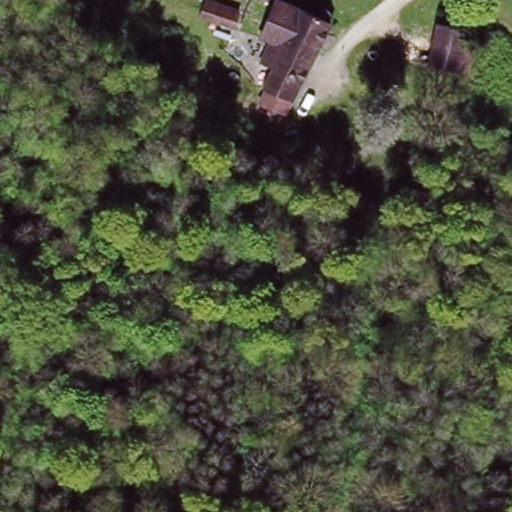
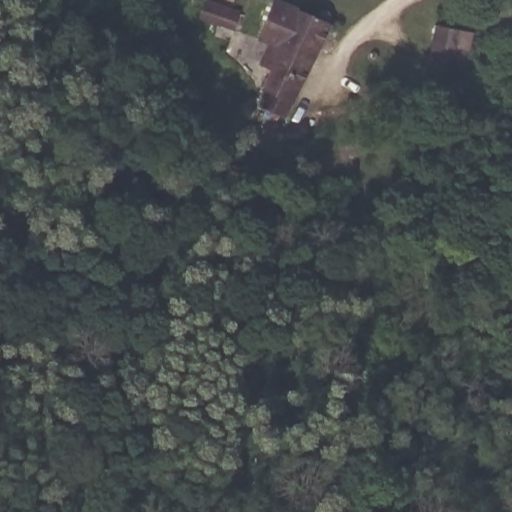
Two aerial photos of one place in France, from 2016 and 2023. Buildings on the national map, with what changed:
unchanged [(212,0),(235,9),(226,29),(198,17),(206,0),(212,0)]
unchanged [(281,0),(320,19),(323,14),(331,17),(328,24),(333,25),(290,120),(262,108),(271,91),(265,89),(273,72),(263,67),(275,42),(260,36),(278,0),(281,0)]
unchanged [(434,37),(468,41),(465,65),(430,59),(434,37)]

